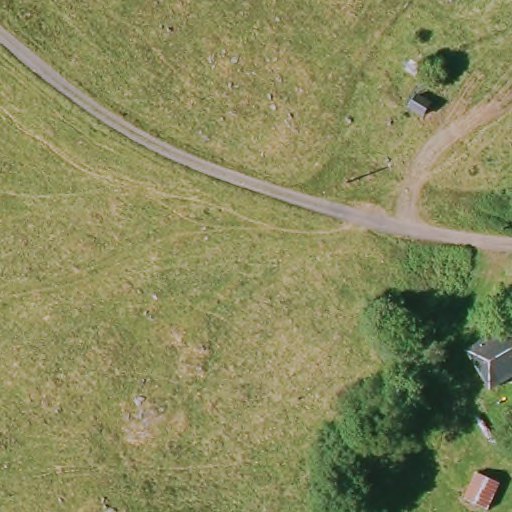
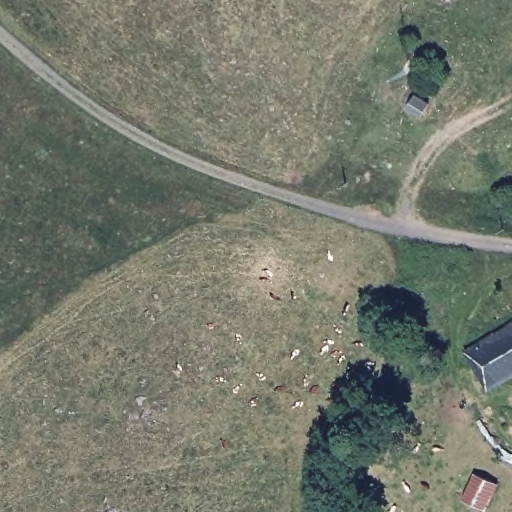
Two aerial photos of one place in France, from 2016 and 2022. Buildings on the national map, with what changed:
unchanged [(490,388),(467,347),(512,324),(512,377),(490,388)]
unchanged [(465,500),(473,473),(498,482),(491,508),(465,500)]

